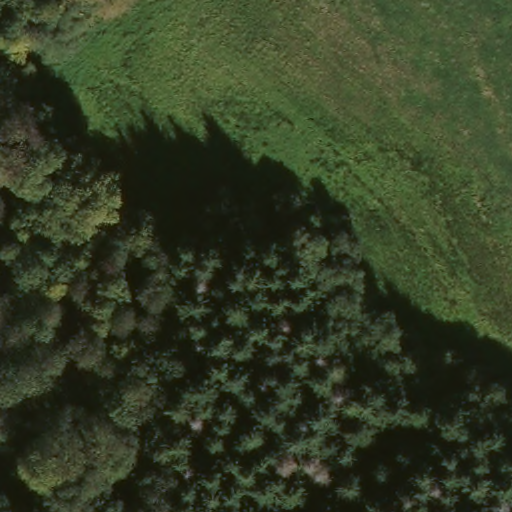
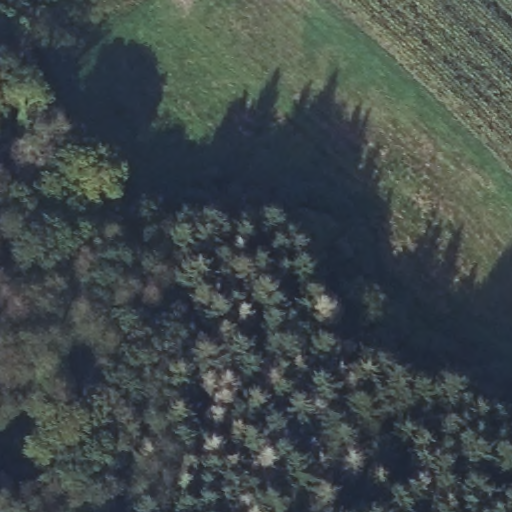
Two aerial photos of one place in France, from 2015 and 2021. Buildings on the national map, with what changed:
unchanged [(73,508),(81,473),(121,485),(113,512),(83,512),(73,508)]

